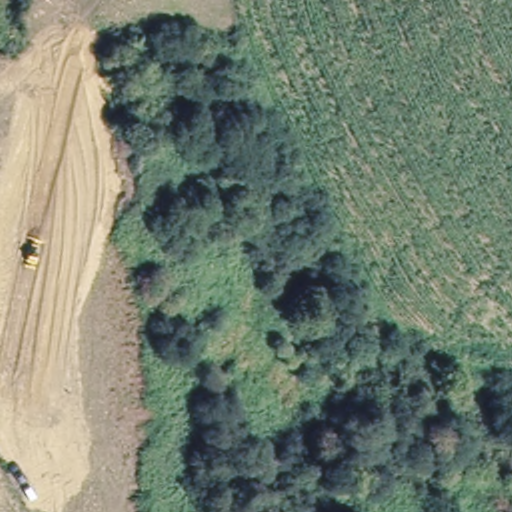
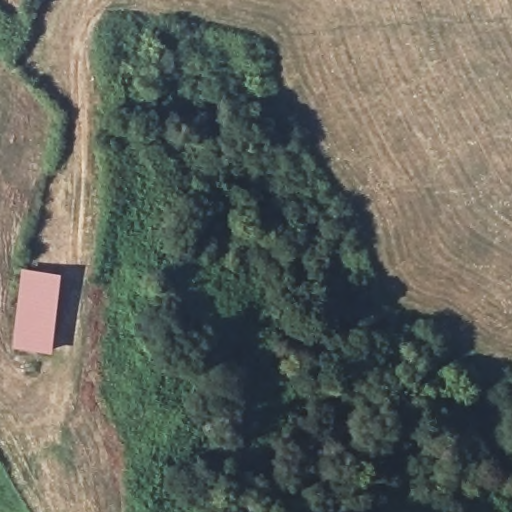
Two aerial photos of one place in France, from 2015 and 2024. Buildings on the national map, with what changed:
new [(62,272),(53,352),(15,347),(22,267),(62,272)]

